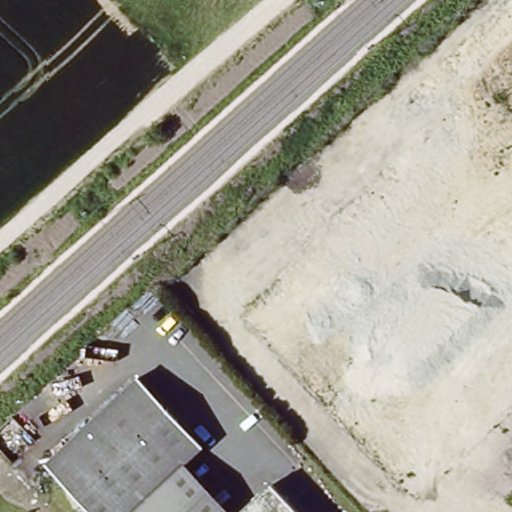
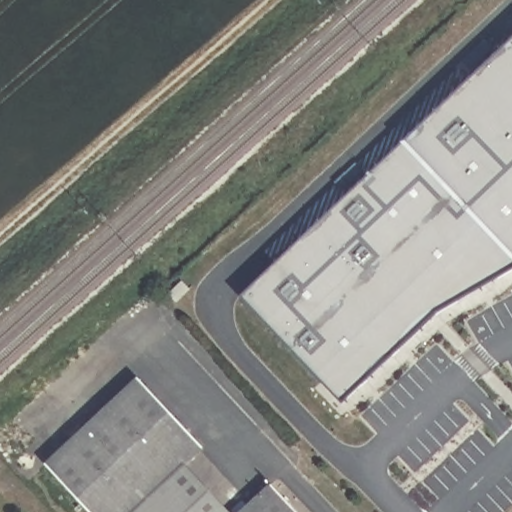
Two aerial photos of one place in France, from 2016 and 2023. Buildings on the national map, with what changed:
new [(437,311),(342,404),(242,295),(403,141),(512,38),(512,269),(437,311)]
demolished [(325,251),(365,294),(482,186),(442,143),(494,96),(512,115),(512,392),(403,486),(251,320),(325,251)]
unchanged [(52,468),(139,379),(203,446),(169,482),(200,512),(93,512),(52,468)]
unchanged [(275,478),(309,512),(241,512),(275,478)]

